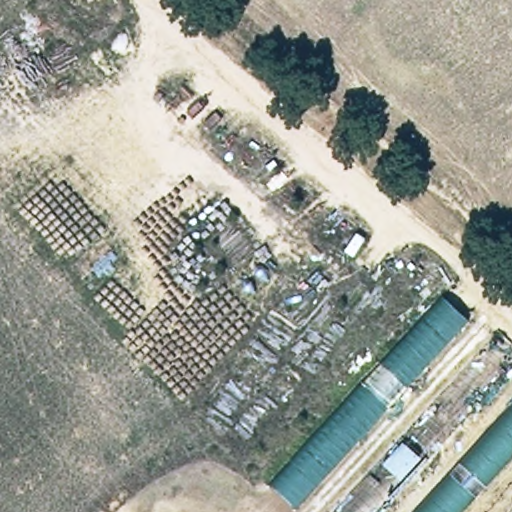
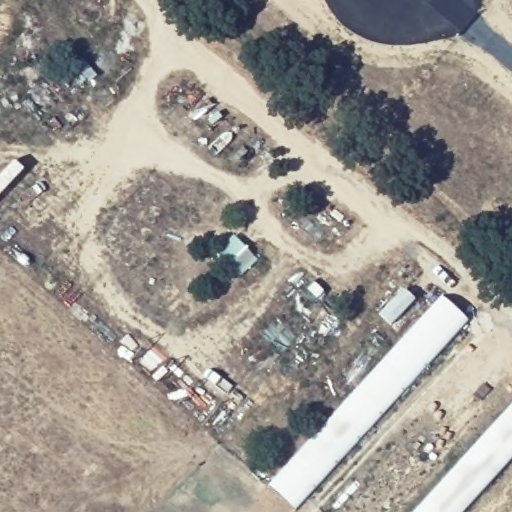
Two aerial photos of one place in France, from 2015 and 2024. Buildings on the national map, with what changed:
unchanged [(469,323),(295,511),(270,487),(440,296),(469,323)]
unchanged [(461,512),(415,512),(512,404),(512,457),(461,512)]

